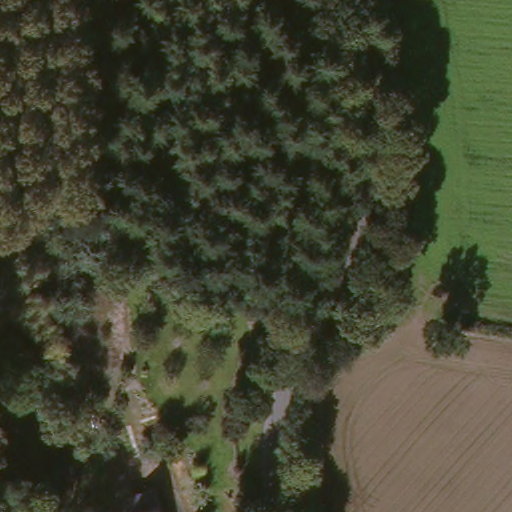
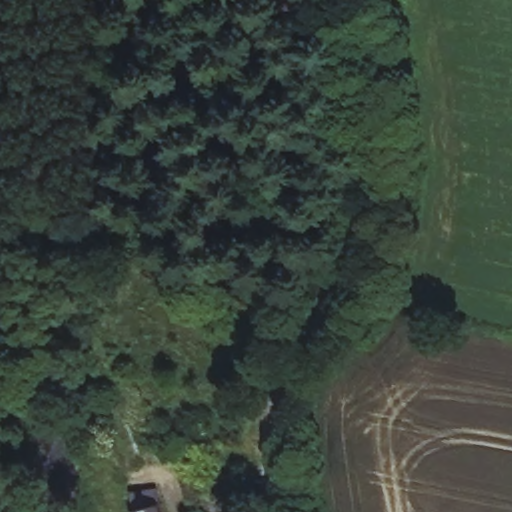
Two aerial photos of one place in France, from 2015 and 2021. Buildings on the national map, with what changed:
unchanged [(124,497),(119,485),(141,479),(146,493),(154,491),(161,512),(129,512),(124,497)]

